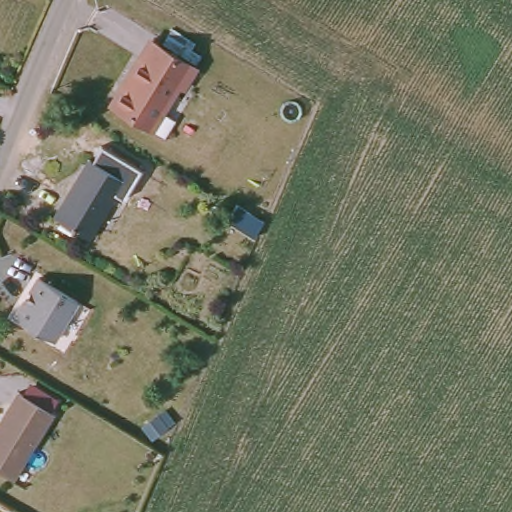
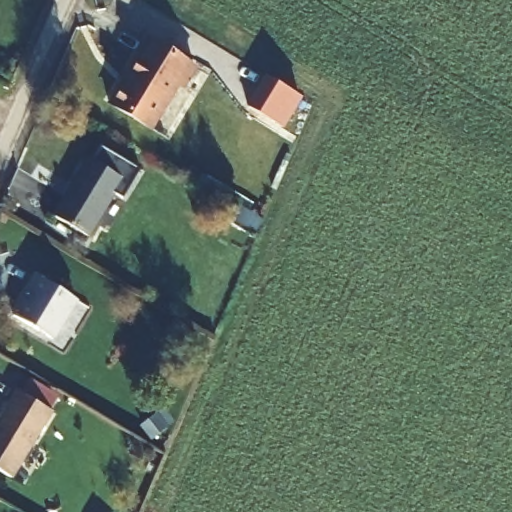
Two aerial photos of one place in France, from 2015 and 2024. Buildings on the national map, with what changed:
unchanged [(121,76),(124,78),(151,35),(194,61),(182,80),(176,77),(149,121),(109,96),(121,76)]
new [(284,129),(246,105),(265,75),(303,97),(284,129)]
unchanged [(83,156),(117,177),(83,235),(49,215),(83,156)]
unchanged [(247,235),(234,227),(219,218),(230,201),(244,210),(257,217),(247,235)]
unchanged [(33,275),(72,297),(49,336),(10,313),(33,275)]
unchanged [(49,408),(9,476),(0,470),(0,412),(14,388),(49,408)]

